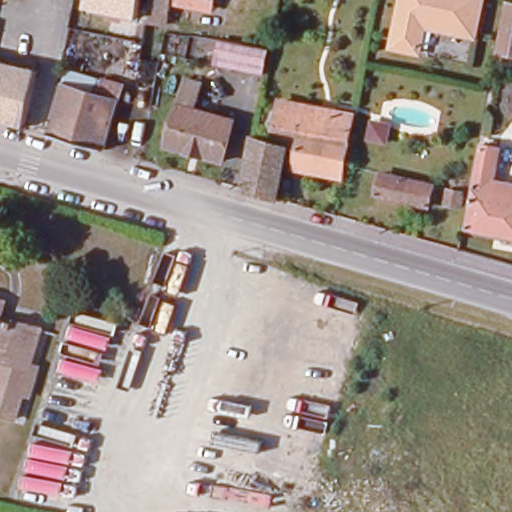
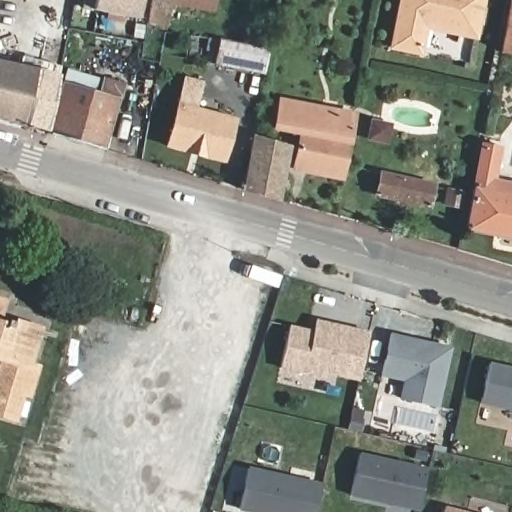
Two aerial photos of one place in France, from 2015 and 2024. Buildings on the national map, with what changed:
unchanged [(140,20),(84,10),(85,0),(144,0),(140,20)]
unchanged [(169,27),(149,22),(153,0),(173,0),(169,27)]
unchanged [(473,40),(422,29),(417,55),(390,50),(400,0),(480,0),(473,40)]
unchanged [(507,4),(512,5),(512,58),(497,55),(507,4)]
unchanged [(262,74),(212,67),(217,42),(267,50),(262,74)]
unchanged [(17,72),(20,61),(33,64),(32,72),(35,72),(24,125),(0,118),(0,67),(17,72)]
unchanged [(57,85),(60,86),(64,72),(99,83),(99,81),(120,87),(102,152),(44,135),(57,85)]
unchanged [(204,87),(201,97),(196,96),(192,111),(237,122),(226,165),(169,149),(187,82),(204,87)]
unchanged [(351,114),(341,168),(293,159),(298,131),(273,126),(278,100),(351,114)]
unchanged [(249,134),(286,145),(276,198),(240,187),(249,134)]
unchanged [(490,183),(512,187),(512,242),(463,234),(480,147),(496,151),(490,183)]
unchanged [(431,189),(426,210),(375,197),(380,177),(431,189)]
unchanged [(461,196),(458,210),(442,207),(446,193),(461,196)]
unchanged [(4,306),(0,317),(0,304),(4,306)]
new [(288,325),(307,329),(306,333),(312,335),(316,319),(368,331),(357,377),(323,370),(322,376),(280,366),(288,325)]
unchanged [(39,333),(29,370),(37,372),(29,400),(22,398),(15,423),(0,419),(0,372),(2,363),(0,362),(0,321),(39,333)]
new [(385,333),(409,338),(413,345),(426,347),(427,342),(445,347),(431,405),(395,396),(398,378),(376,373),(385,333)]
new [(512,368),(512,409),(480,402),(488,362),(512,368)]
new [(358,453),(427,468),(418,510),(350,495),(358,453)]
new [(321,486),(315,512),(249,512),(238,510),(247,469),(321,486)]
new [(461,512),(444,512),(445,508),(461,512)]

